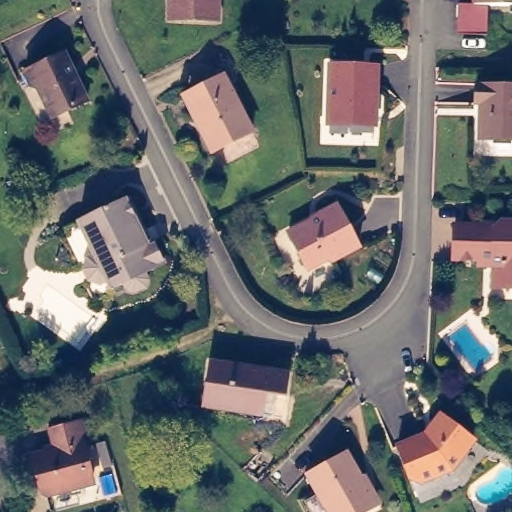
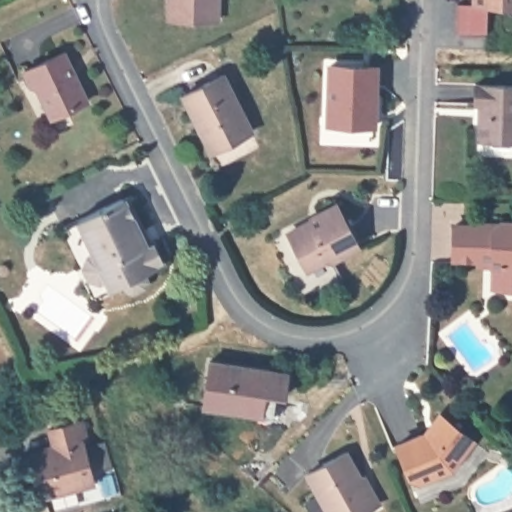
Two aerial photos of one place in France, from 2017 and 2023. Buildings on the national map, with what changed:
unchanged [(218,15),(170,14),(171,0),(219,0),(218,15)]
unchanged [(484,27),(453,26),(455,0),(485,0),(484,27)]
unchanged [(71,64),(69,66),(76,72),(87,97),(53,112),(40,84),(30,81),(25,66),(64,48),(71,64)]
unchanged [(375,64),(373,121),(326,120),(328,62),(375,64)]
unchanged [(250,127),(210,146),(198,124),(182,92),(187,89),(223,71),(250,127)]
unchanged [(512,80),(512,135),(475,134),(477,99),(471,99),(472,79),(512,80)]
unchanged [(140,236),(146,233),(147,236),(150,235),(157,252),(155,253),(156,258),(140,266),(142,270),(140,279),(128,284),(121,281),(118,275),(107,281),(73,214),(117,192),(140,236)]
unchanged [(358,242),(331,255),(323,254),(307,263),(288,227),(322,209),(321,206),(335,199),(358,242)]
unchanged [(490,260),(477,259),(477,254),(451,253),(452,222),(479,222),(480,224),(490,224),(498,217),(512,217),(512,282),(502,282),(490,282),(490,260)]
unchanged [(264,412),(205,403),(212,359),(290,371),(287,394),(278,393),(275,414),(264,412)]
unchanged [(422,479),(412,475),(400,444),(427,432),(442,413),(473,437),(475,438),(461,455),(452,467),(422,479)]
unchanged [(85,439),(82,440),(91,478),(76,482),(76,484),(40,494),(30,453),(52,446),(47,427),(80,417),(85,439)]
unchanged [(360,512),(332,512),(310,472),(348,451),(377,503),(360,512)]

